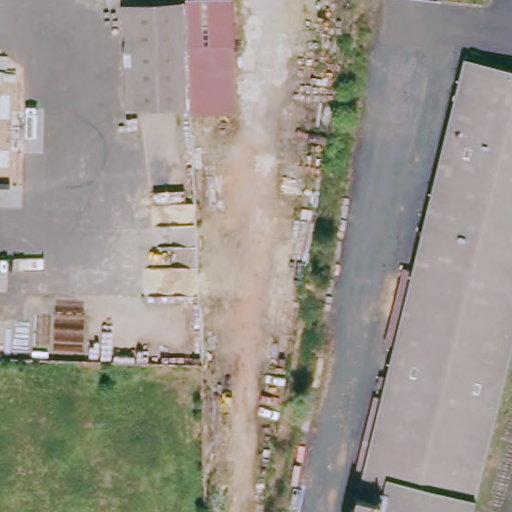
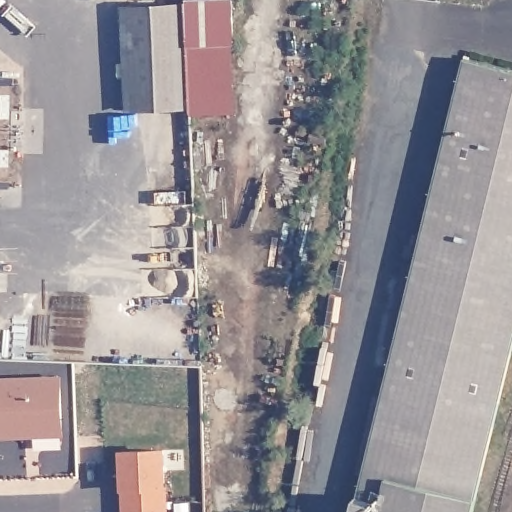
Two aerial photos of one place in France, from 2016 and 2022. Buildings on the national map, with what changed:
unchanged [(238,4),(240,48),(191,51),(191,45),(188,6),(238,4)]
unchanged [(191,45),(191,51),(193,106),(128,109),(122,10),(188,6),(191,45)]
unchanged [(240,48),(244,103),(193,106),(191,51),(240,48)]
unchanged [(467,512),(347,512),(350,495),(457,59),(512,72),(512,330),(470,500),(467,512)]
new [(0,435),(0,379),(61,377),(63,417),(63,432),(0,435)]
new [(167,512),(126,512),(124,451),(165,450),(167,512)]

